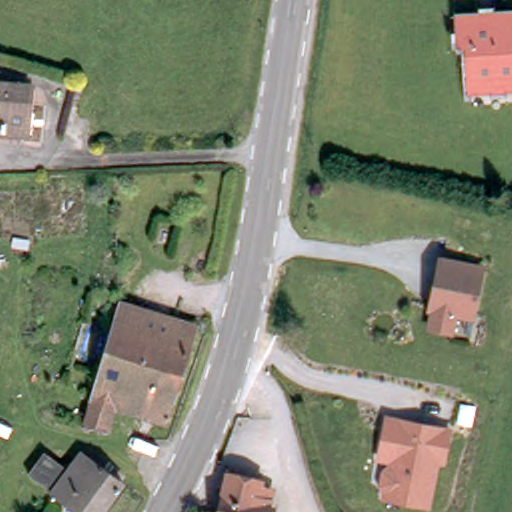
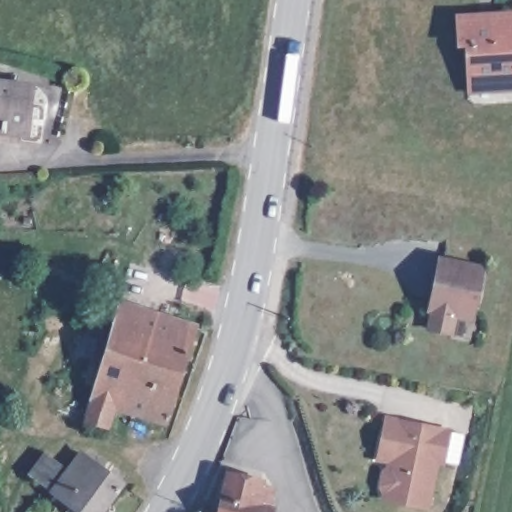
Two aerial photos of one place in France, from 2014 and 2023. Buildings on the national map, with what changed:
unchanged [(493,88),(492,81),(470,83),(465,41),(457,42),(455,16),(510,10),(512,25),(512,87),(502,87),(493,88)]
unchanged [(3,127),(0,126),(0,79),(35,85),(25,140),(2,136),(3,127)]
unchanged [(482,264),(472,320),(457,317),(454,334),(424,327),(439,254),(482,264)]
unchanged [(87,411),(92,394),(101,363),(112,326),(122,296),(195,321),(167,417),(116,401),(110,418),(87,411)]
unchanged [(101,363),(75,356),(87,318),(112,326),(101,363)]
unchanged [(452,427),(445,468),(437,466),(429,510),(380,502),(387,463),(377,460),(383,415),(452,427)]
unchanged [(80,453),(95,464),(109,475),(117,467),(125,474),(97,512),(76,512),(29,474),(47,450),(69,467),(80,453)]
unchanged [(259,512),(211,512),(227,463),(262,473),(260,480),(270,483),(264,498),(274,501),(271,512),(259,512)]

